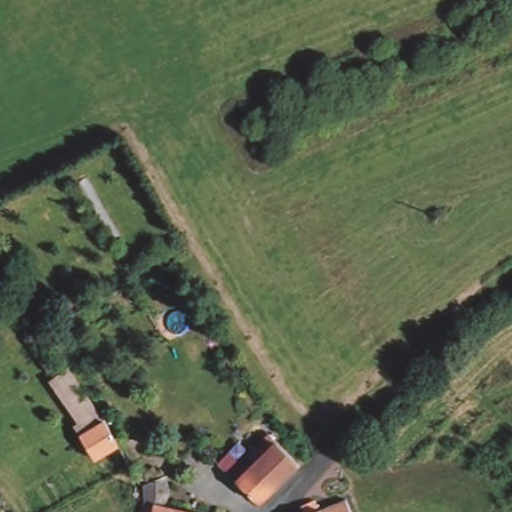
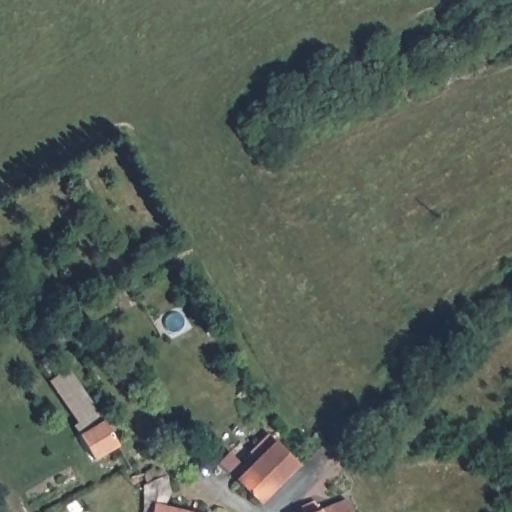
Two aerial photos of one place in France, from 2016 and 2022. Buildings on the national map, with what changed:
unchanged [(45,372),(59,363),(69,376),(95,416),(110,439),(87,453),(78,440),(72,430),(79,426),(45,372)]
unchanged [(256,457),(268,446),(277,443),(299,466),(260,505),(240,485),(262,463),(256,457)]
unchanged [(151,506),(141,506),(138,488),(141,486),(138,481),(138,477),(142,472),(146,468),(150,468),(154,471),(157,477),(160,476),(162,494),(159,500),(156,506),(179,512),(150,512),(151,506)]
unchanged [(344,502),(349,512),(317,512),(344,502)]
unchanged [(302,507),(314,503),(317,512),(304,512),(302,507)]

